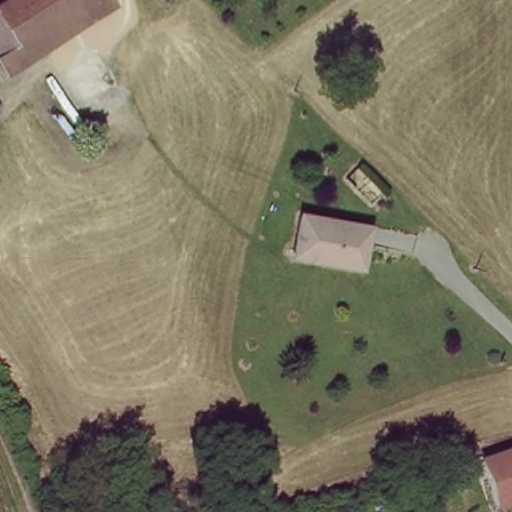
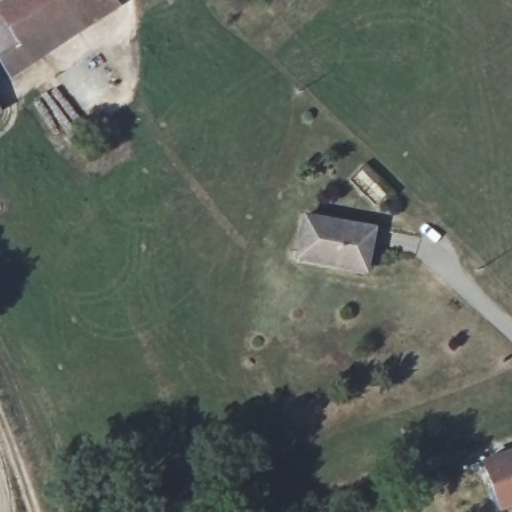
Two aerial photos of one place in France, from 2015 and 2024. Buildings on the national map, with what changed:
unchanged [(0,3),(5,0),(117,0),(12,68),(4,55),(0,49),(0,3)]
unchanged [(298,249),(305,212),(375,228),(368,270),(331,263),(297,256),(298,249)]
unchanged [(502,508),(484,464),(512,453),(512,504),(502,508)]

